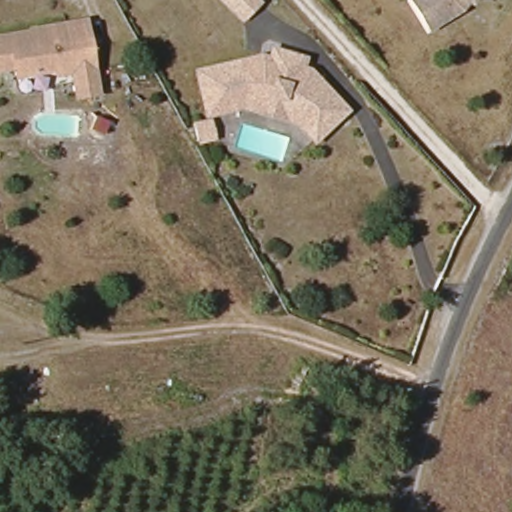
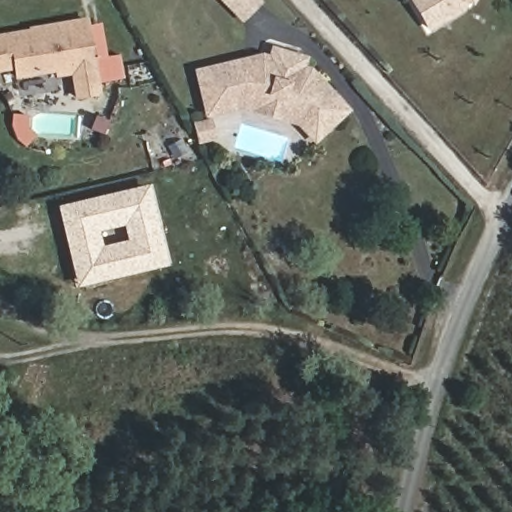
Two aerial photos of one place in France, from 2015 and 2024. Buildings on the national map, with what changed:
unchanged [(240,22),(220,0),(260,0),(240,22)]
unchanged [(471,4),(468,2),(464,12),(434,33),(413,3),(418,0),(473,0),(471,4)]
unchanged [(100,94),(74,99),(70,67),(49,72),(51,92),(20,97),(12,68),(0,70),(0,32),(85,16),(100,94)]
unchanged [(314,144),(291,122),(241,110),(212,118),(216,139),(198,144),(191,119),(205,115),(192,67),(269,52),(272,43),(307,57),(306,62),(351,109),(314,144)]
new [(149,184),(168,265),(76,287),(56,205),(149,184)]

